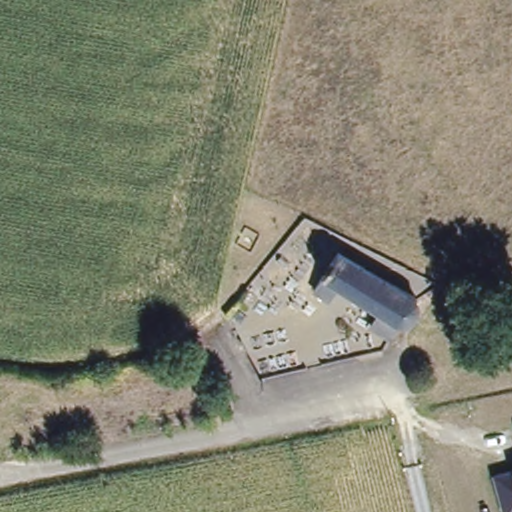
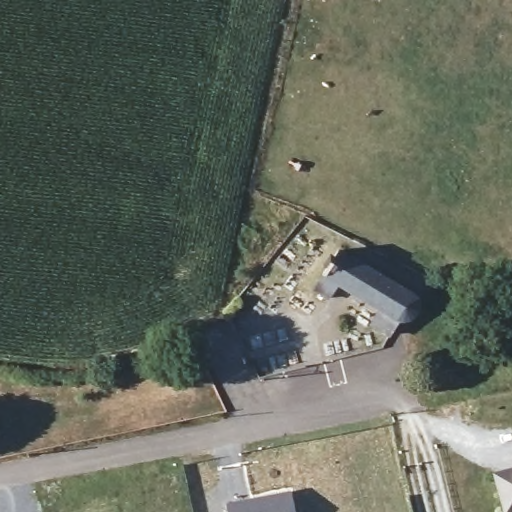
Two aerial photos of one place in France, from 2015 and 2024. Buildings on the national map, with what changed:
unchanged [(371,318),(376,311),(378,308),(334,279),(325,294),(308,284),(337,244),(422,293),(418,313),(400,323),(397,333),(371,318)]
unchanged [(506,511),(496,472),(512,467),(512,509),(506,511)]
new [(292,491),(296,512),(227,512),(226,502),(292,491)]

